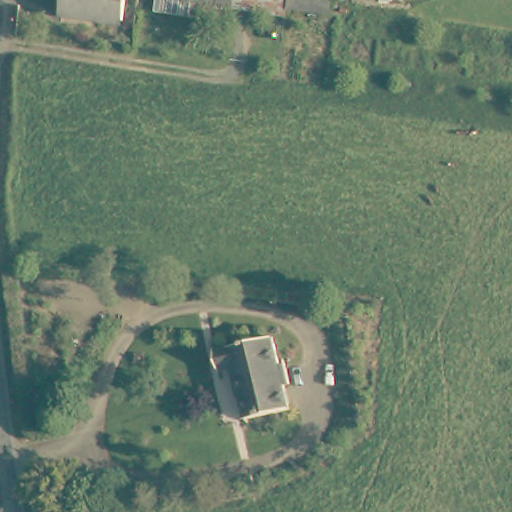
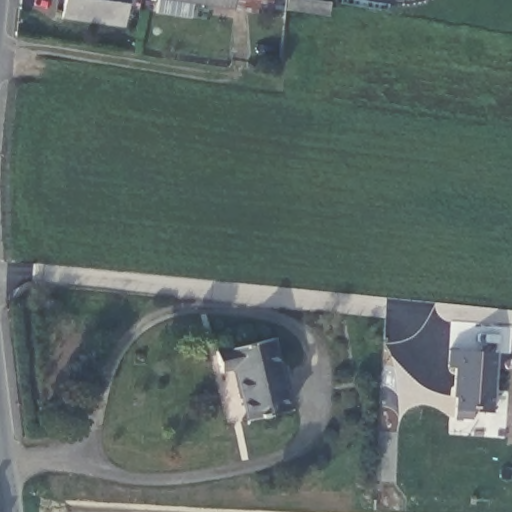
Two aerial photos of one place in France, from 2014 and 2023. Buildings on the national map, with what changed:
unchanged [(66,12),(69,0),(132,0),(128,24),(66,12)]
unchanged [(184,4),(182,19),(150,14),(152,0),(278,0),(275,18),(184,4)]
unchanged [(273,340),(278,363),(285,362),(290,385),(284,387),(289,411),(245,421),(234,369),(218,373),(214,354),(273,340)]
new [(496,353),(492,414),(478,412),(472,419),(454,419),(455,397),(453,396),(455,368),(447,368),(448,351),(496,353)]

